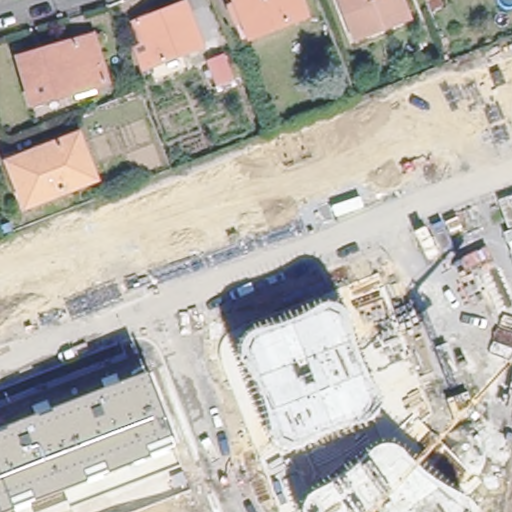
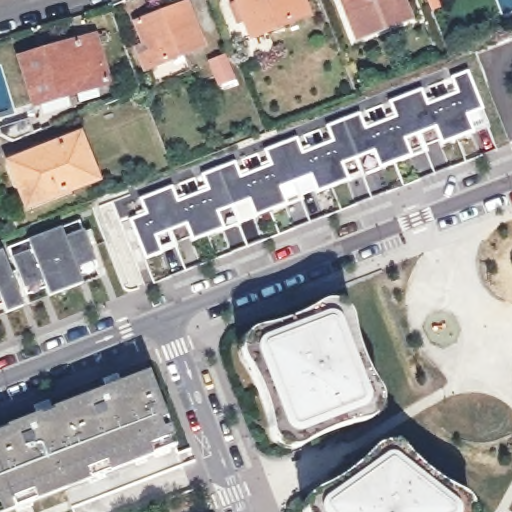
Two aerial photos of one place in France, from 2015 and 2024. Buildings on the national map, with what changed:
unchanged [(155,45),(144,18),(193,0),(208,42),(151,64),(146,49),(155,45)]
unchanged [(310,11),(256,31),(244,0),(306,0),(310,11)]
unchanged [(412,16),(358,36),(345,0),(407,0),(412,16)]
unchanged [(430,3),(429,0),(438,0),(430,3)]
unchanged [(35,100),(23,55),(98,33),(112,79),(35,100)]
unchanged [(230,50),(238,73),(223,78),(215,56),(230,50)]
new [(462,88),(458,79),(474,73),(493,121),(461,134),(446,94),(462,88)]
new [(426,85),(432,100),(446,94),(461,134),(430,145),(409,91),(426,85)]
new [(399,112),(394,97),(409,91),(430,145),(399,158),(383,118),(399,112)]
new [(366,114),(370,123),(383,118),(399,158),(367,170),(349,121),(366,114)]
new [(328,139),(329,142),(338,139),(334,127),(349,121),(367,170),(336,182),(320,142),(328,139)]
unchanged [(30,202),(15,158),(82,133),(98,177),(30,202)]
new [(301,133),(307,147),(311,146),(311,148),(317,146),(316,144),(320,142),(336,182),(305,194),(284,140),(301,133)]
new [(274,159),(269,146),(284,140),(305,194),(274,206),(258,166),(274,159)]
new [(241,162),(244,171),(258,166),(274,206),(242,218),(223,168),(241,162)]
new [(211,183),(208,174),(223,168),(242,218),(211,230),(195,190),(211,183)]
new [(176,182),(181,195),(195,190),(211,230),(180,242),(159,188),(176,182)]
new [(149,208),(143,194),(159,188),(180,242),(148,254),(132,214),(149,208)]
new [(81,272),(84,280),(67,287),(43,224),(79,210),(96,255),(100,264),(81,272)]
new [(24,282),(7,238),(43,224),(67,287),(50,293),(47,285),(28,292),(24,282)]
new [(1,241),(25,303),(8,310),(5,301),(0,303),(0,241),(1,241)]
unchanged [(253,381),(245,371),(241,365),(238,355),(239,345),(242,336),(252,330),(266,327),(282,322),(298,317),(310,309),(319,304),(328,302),(336,305),(343,311),(347,326),(352,348),(358,364),(372,387),(376,395),(376,403),(373,411),(367,417),(354,422),(335,426),(318,434),(305,441),(295,445),(286,446),(277,444),(272,439),(269,431),(262,399),(253,381)]
unchanged [(161,417),(165,427),(169,436),(172,446),(148,456),(106,471),(85,480),(33,500),(11,508),(2,512),(0,512),(0,428),(145,373),(161,417)]
unchanged [(389,443),(396,446),(406,456),(418,467),(435,480),(450,490),(460,496),(465,500),(469,507),(469,512),(302,512),(303,501),(306,496),(313,491),(329,482),(341,475),(353,465),(363,456),(372,447),(379,444),(389,443)]

